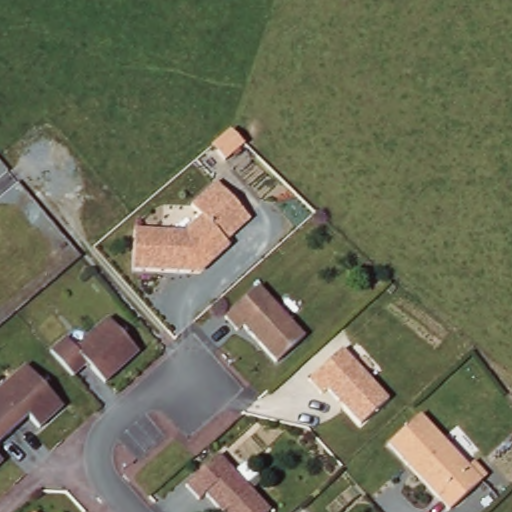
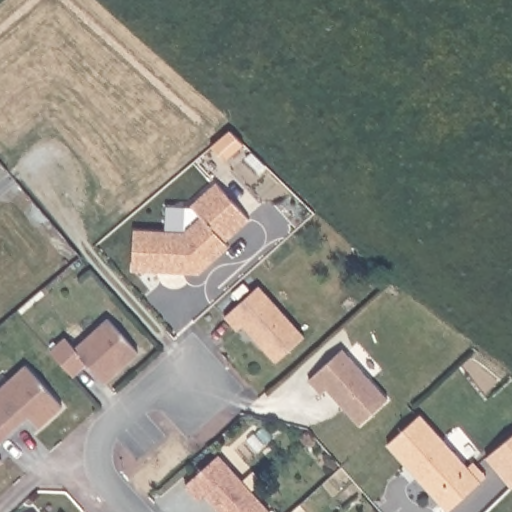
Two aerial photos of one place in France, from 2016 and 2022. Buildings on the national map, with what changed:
unchanged [(238,130),(215,149),(203,134),(222,118),(238,130)]
unchanged [(187,272),(130,270),(131,229),(181,231),(201,213),(194,205),(220,183),(252,220),(227,241),(231,245),(205,267),(200,272),(187,272)]
unchanged [(259,285),(304,336),(276,361),(243,324),(238,329),(226,315),(259,285)]
unchanged [(51,349),(66,336),(76,347),(109,318),(140,353),(106,383),(88,363),(74,375),(51,349)]
unchanged [(326,388),(320,393),(308,379),(342,349),(386,399),(358,424),(341,405),(337,400),(326,388)]
unchanged [(8,432),(0,422),(0,384),(24,363),(61,406),(37,427),(27,415),(20,421),(8,432)]
unchanged [(388,441),(421,412),(480,479),(447,508),(416,473),(407,462),(388,441)]
unchanged [(8,432),(0,440),(0,422),(8,432)]
new [(486,457),(512,436),(512,485),(511,485),(486,457)]
unchanged [(204,496),(190,508),(177,494),(218,456),(269,512),(219,512),(216,509),(204,496)]

